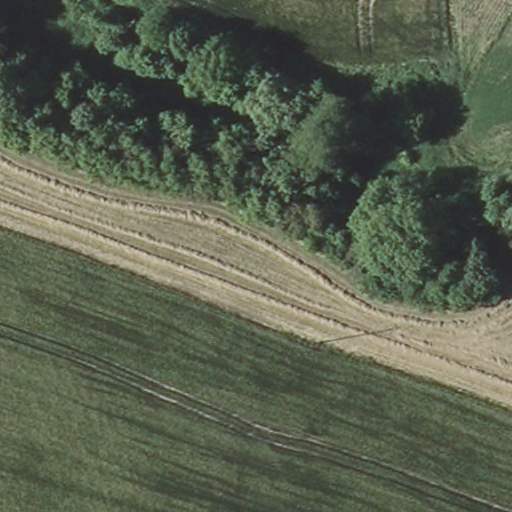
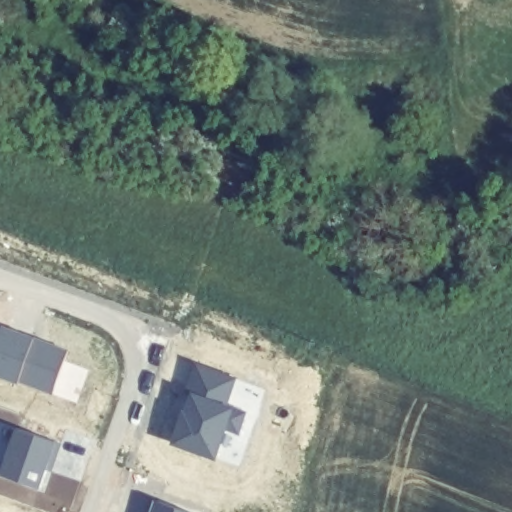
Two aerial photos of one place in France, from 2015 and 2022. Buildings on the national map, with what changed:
new [(67,351),(52,395),(0,376),(0,331),(1,326),(67,351)]
new [(236,379),(226,404),(246,411),(238,436),(224,430),(213,460),(170,444),(188,391),(186,390),(194,362),(236,379)]
new [(53,443),(38,489),(0,475),(0,471),(16,428),(53,443)]
new [(179,512),(149,512),(153,502),(179,512)]

